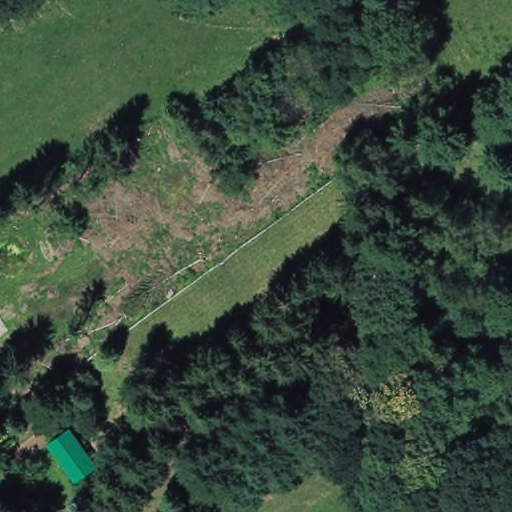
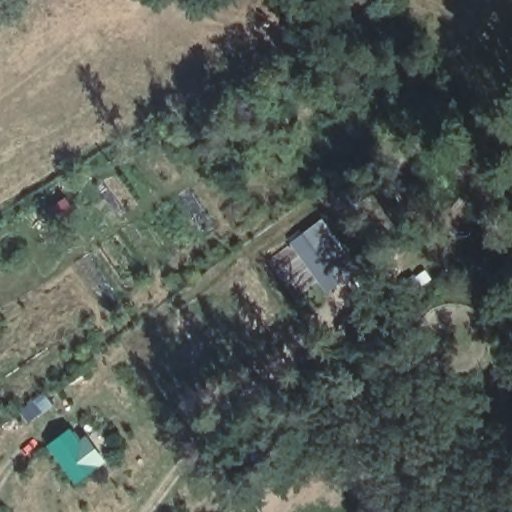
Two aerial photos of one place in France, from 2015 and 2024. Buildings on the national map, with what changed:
new [(361,268),(324,299),(286,245),(321,221),(361,268)]
unchanged [(414,274),(421,284),(405,295),(397,285),(414,274)]
unchanged [(53,449),(72,434),(93,464),(100,471),(82,484),(77,478),(53,449)]

